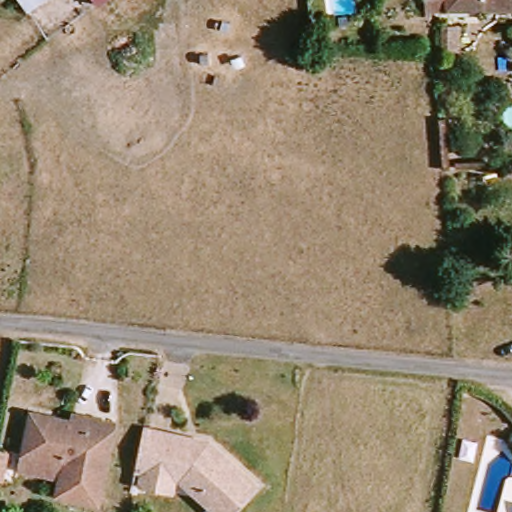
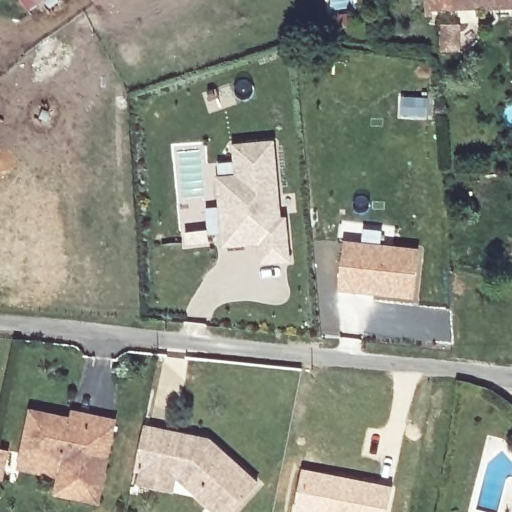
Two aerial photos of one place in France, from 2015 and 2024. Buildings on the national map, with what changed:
unchanged [(35,0),(24,8),(17,5),(13,0),(35,0)]
unchanged [(97,0),(109,0),(101,6),(97,0)]
unchanged [(426,16),(425,0),(512,0),(512,9),(426,16)]
new [(220,245),(218,206),(216,178),(235,177),(234,145),(273,141),(279,219),(284,219),(286,261),(259,262),(257,243),(245,243),(220,245)]
new [(345,243),(421,252),(415,299),(339,290),(345,243)]
unchanged [(22,456),(32,414),(72,422),(73,417),(89,419),(116,424),(99,505),(57,496),(60,478),(20,471),(22,456)]
unchanged [(152,487),(136,484),(139,468),(146,426),(167,429),(191,434),(211,438),(263,478),(236,512),(226,512),(182,479),(181,492),(152,487)]
unchanged [(0,438),(9,440),(2,470),(0,469),(0,438)]
new [(301,468),(394,486),(389,512),(291,512),(301,468)]

